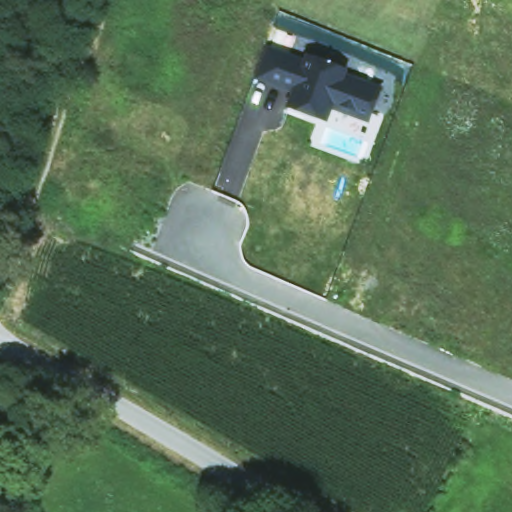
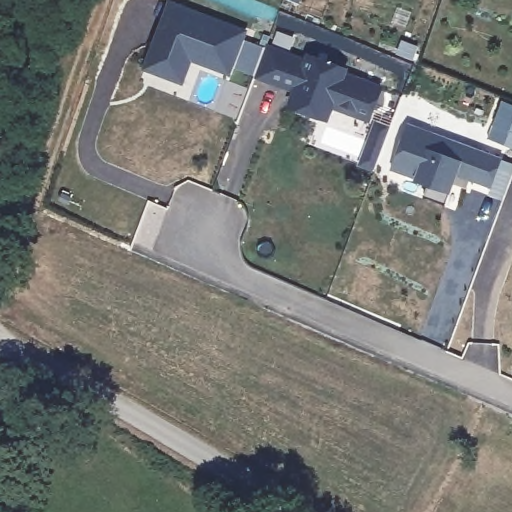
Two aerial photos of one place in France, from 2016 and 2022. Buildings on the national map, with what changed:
new [(170,1),(244,31),(227,73),(190,57),(180,81),(144,66),(170,1)]
unchanged [(348,114),(331,107),(325,121),(288,106),(297,85),(286,80),(283,87),(255,75),(266,46),(305,62),(308,56),(345,71),(343,77),(380,92),(371,112),(368,121),(348,114)]
new [(395,165),(412,122),(503,157),(492,185),(471,176),(470,180),(456,175),(451,187),(446,201),(425,194),(430,179),(395,165)]

